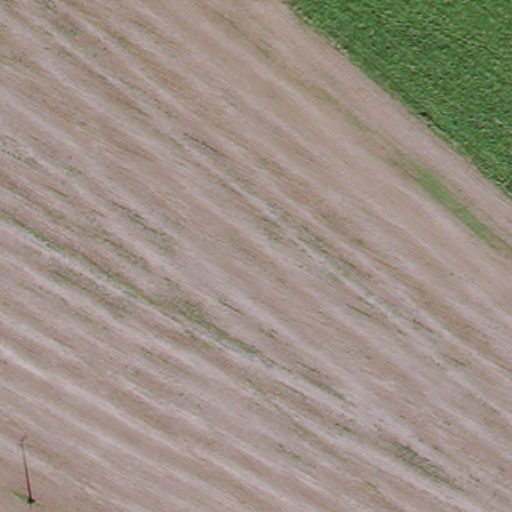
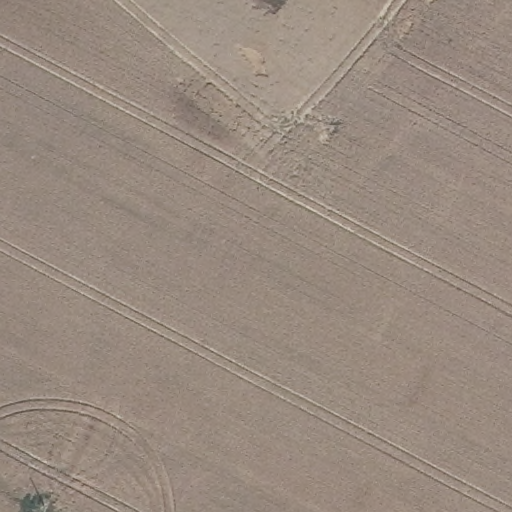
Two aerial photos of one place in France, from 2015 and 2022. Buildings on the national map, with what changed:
[]

